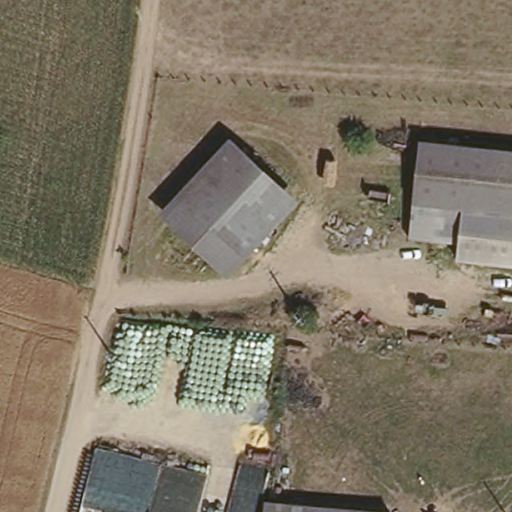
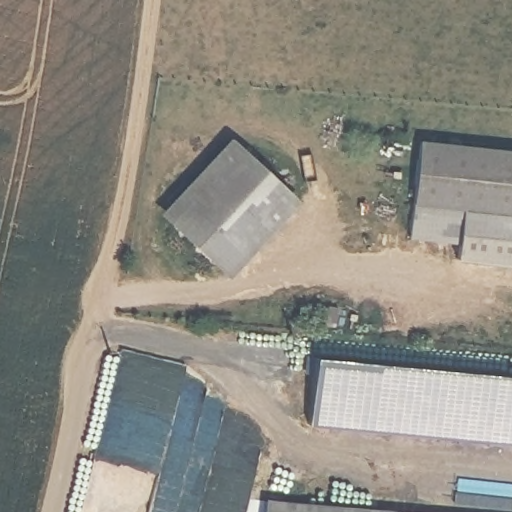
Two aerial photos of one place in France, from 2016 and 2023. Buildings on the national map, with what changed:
unchanged [(299,197),(229,277),(159,216),(232,134),(299,197)]
unchanged [(411,235),(415,201),(420,135),(512,145),(512,264),(459,260),(461,237),(411,235)]
new [(512,375),(512,444),(310,425),(315,358),(512,375)]
unchanged [(264,510),(313,512),(264,512),(264,510)]

